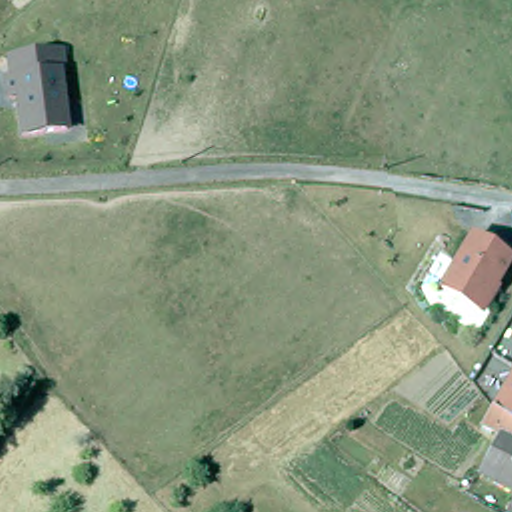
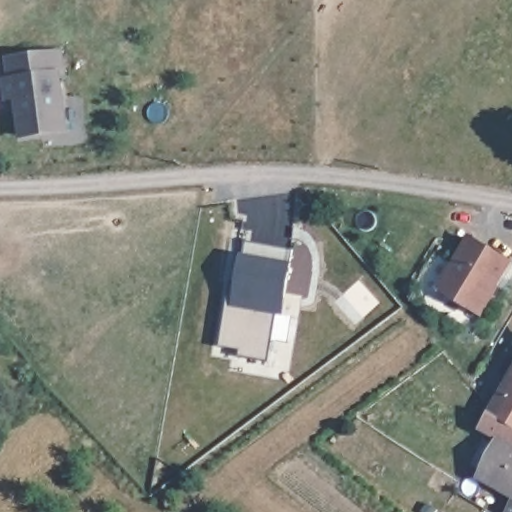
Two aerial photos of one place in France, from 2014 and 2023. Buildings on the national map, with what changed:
unchanged [(54,52),(57,72),(52,73),(59,129),(16,134),(12,95),(2,97),(0,83),(0,79),(5,79),(3,58),(54,52)]
unchanged [(503,257),(472,308),(433,285),(465,234),(503,257)]
new [(231,283),(237,283),(242,253),(245,253),(247,239),(292,248),(290,261),(293,261),(285,316),(277,314),(269,360),(240,355),(240,348),(220,345),(231,283)]
unchanged [(512,420),(495,409),(512,381),(512,420)]
unchanged [(502,436),(485,426),(495,409),(512,420),(512,492),(480,474),(502,436)]
unchanged [(512,512),(511,512),(512,510),(512,512)]

